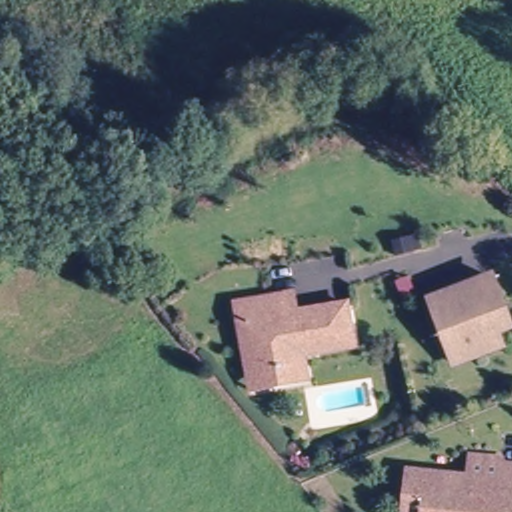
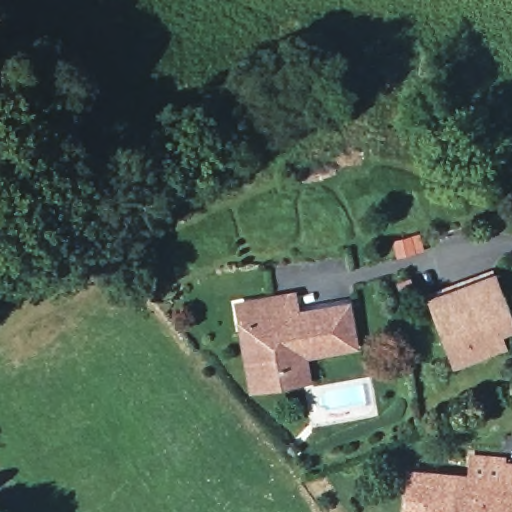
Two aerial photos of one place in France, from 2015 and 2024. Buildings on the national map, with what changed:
unchanged [(480,354),(455,364),(431,299),(453,291),(454,294),(473,287),(472,284),(492,276),(499,294),(511,326),(506,328),(474,340),(480,354)]
unchanged [(350,346),(298,355),(300,366),(254,374),(245,325),(235,326),(232,305),(269,298),(288,295),(291,313),(342,304),(350,346)]
unchanged [(246,390),(235,326),(245,325),(254,374),(300,366),(302,380),(246,390)]
unchanged [(491,512),(420,512),(420,509),(403,507),(403,509),(400,508),(405,466),(465,472),(467,451),(497,454),(496,458),(491,512)]
unchanged [(496,458),(512,460),(512,512),(491,512),(496,458)]

